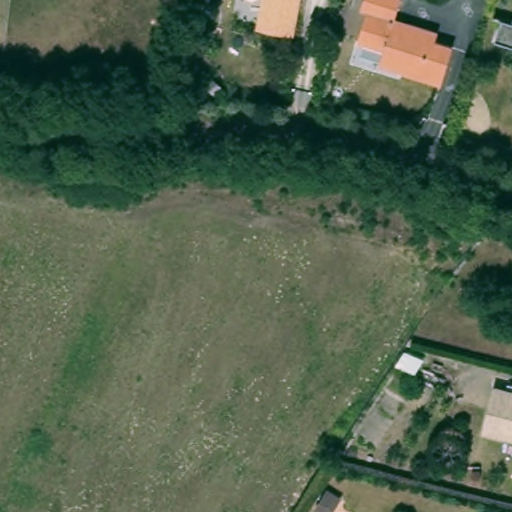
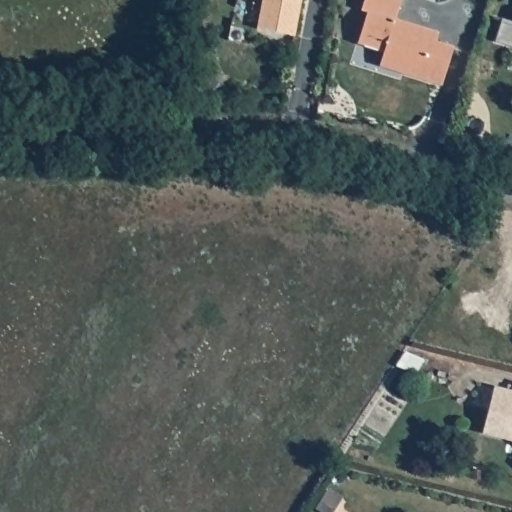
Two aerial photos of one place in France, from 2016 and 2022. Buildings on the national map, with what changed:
unchanged [(259,0),(297,0),(288,34),(253,28),(259,0)]
unchanged [(395,20),(435,31),(434,40),(454,47),(440,86),(376,70),(382,53),(353,45),(362,15),(357,12),(361,0),(399,0),(395,20)]
unchanged [(496,40),(508,4),(512,5),(512,45),(496,40)]
unchanged [(510,440),(485,437),(496,390),(512,393),(512,409),(510,415),(512,416),(512,443),(510,440)]
unchanged [(510,415),(512,409),(512,416),(510,415)]

